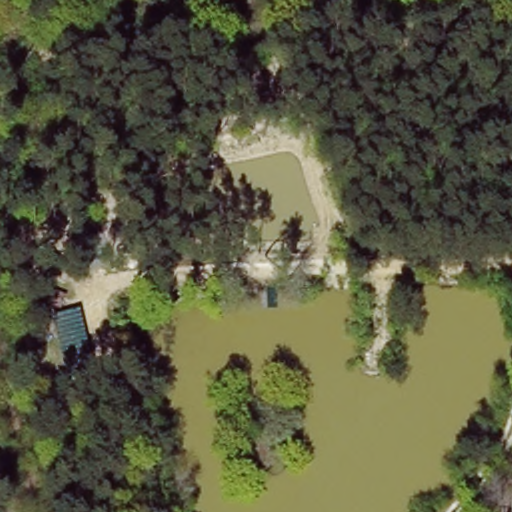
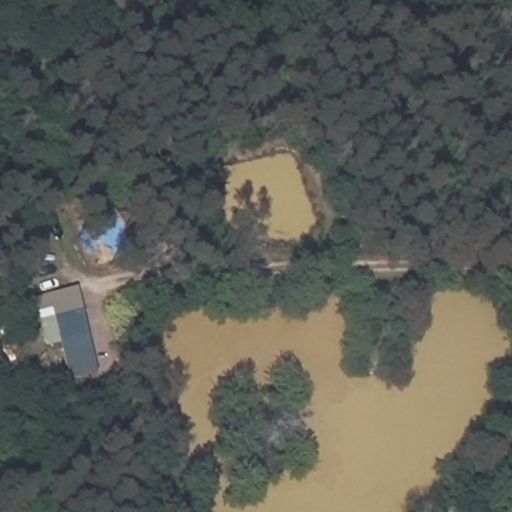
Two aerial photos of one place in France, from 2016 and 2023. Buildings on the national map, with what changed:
new [(77,286),(97,372),(67,380),(58,346),(47,349),(36,299),(77,286)]

